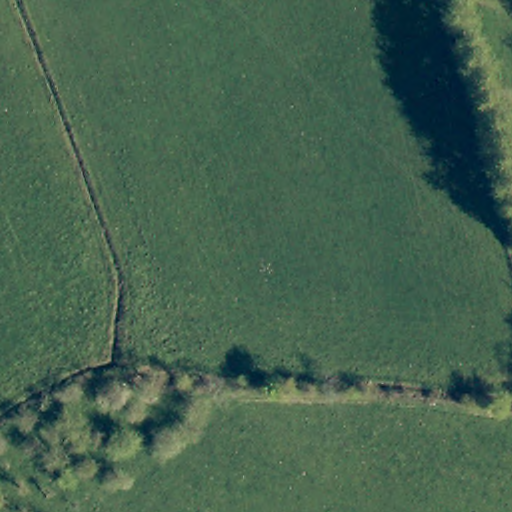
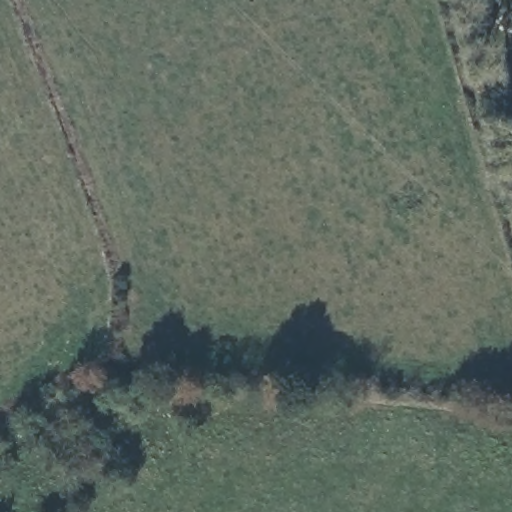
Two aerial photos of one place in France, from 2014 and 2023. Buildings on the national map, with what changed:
[]

